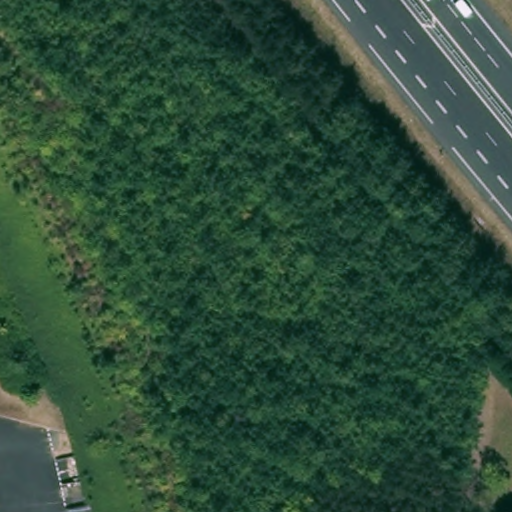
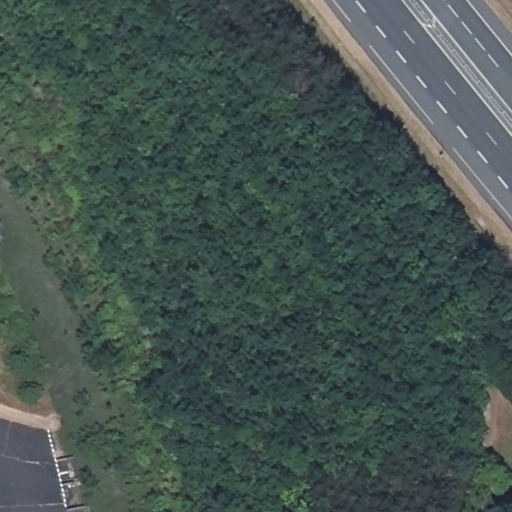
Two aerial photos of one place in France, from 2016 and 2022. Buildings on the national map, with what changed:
[]

